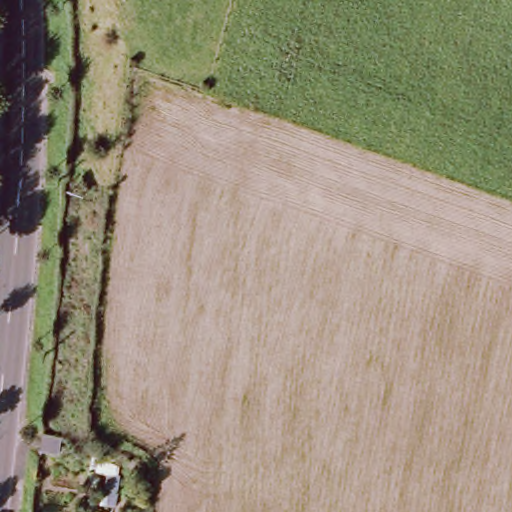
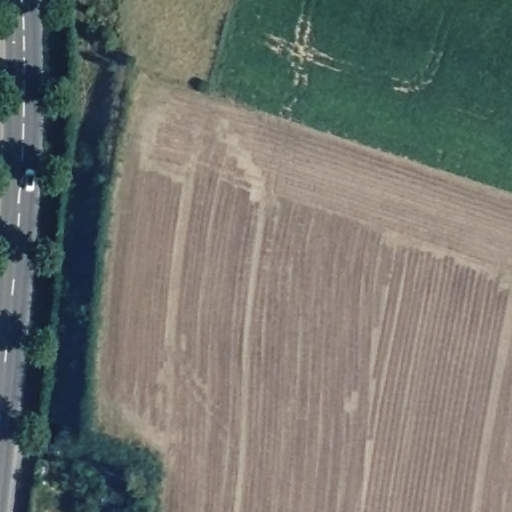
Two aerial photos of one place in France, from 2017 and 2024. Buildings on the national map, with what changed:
unchanged [(45,429),(59,432),(59,449),(43,448),(45,429)]

